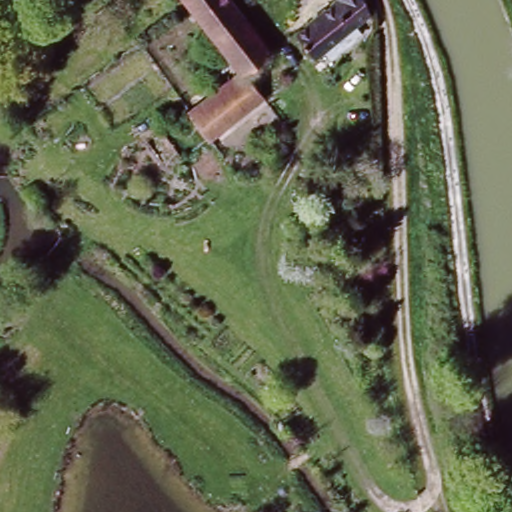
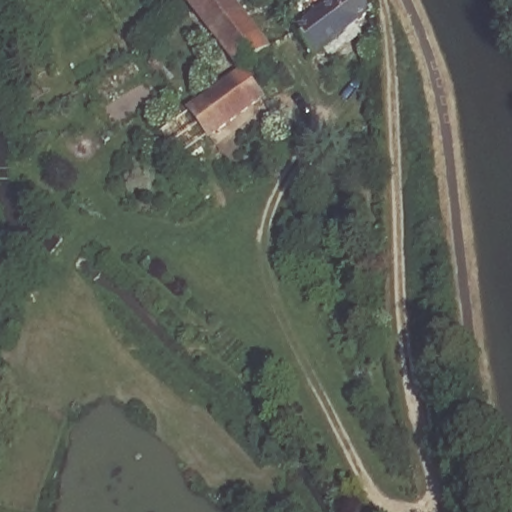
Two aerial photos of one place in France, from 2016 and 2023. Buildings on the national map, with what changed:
unchanged [(194,0),(241,0),(276,46),(247,69),(194,0)]
unchanged [(372,7),(372,8),(317,49),(299,24),(331,0),(367,0),(372,7)]
unchanged [(268,95),(216,134),(195,109),(247,69),(268,95)]

